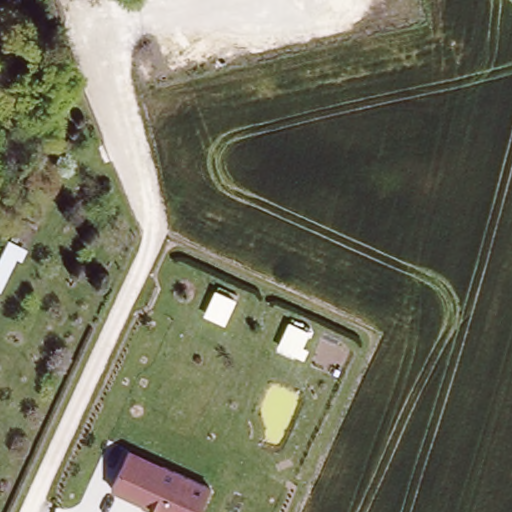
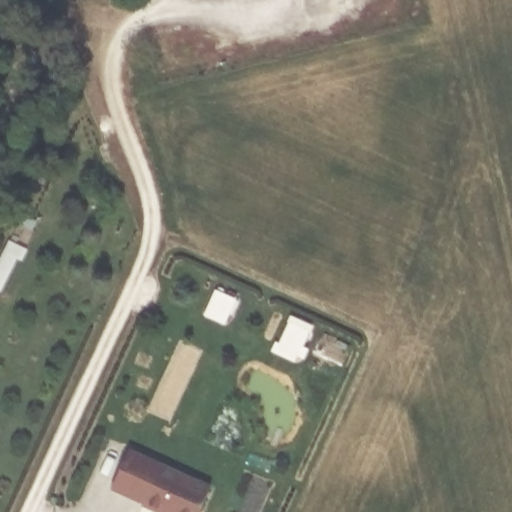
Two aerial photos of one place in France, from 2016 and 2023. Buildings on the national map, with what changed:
unchanged [(210,485),(196,512),(163,512),(108,488),(129,446),(210,485)]

